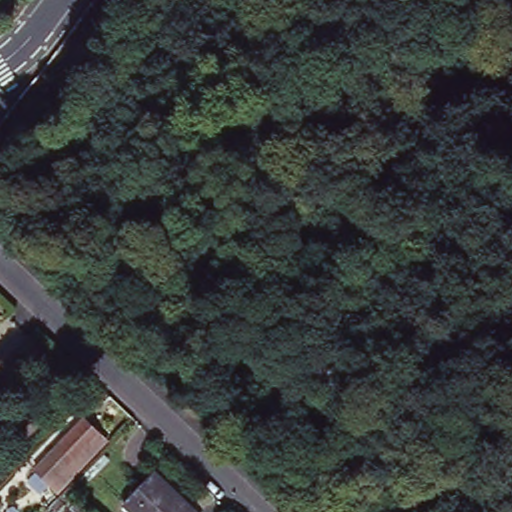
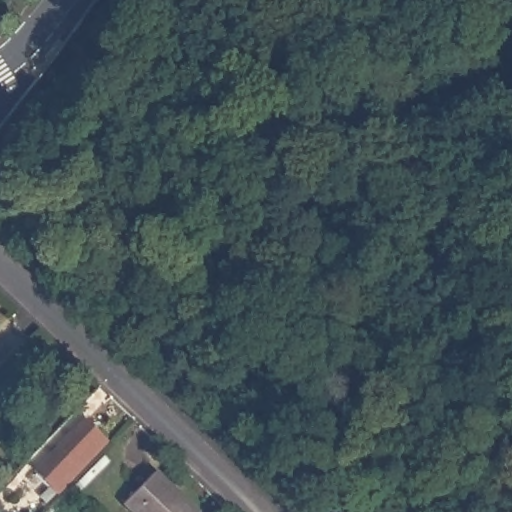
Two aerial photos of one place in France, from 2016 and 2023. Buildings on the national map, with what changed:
unchanged [(58,497),(30,473),(81,417),(105,442),(58,497)]
unchanged [(151,477),(166,491),(188,512),(124,512),(121,510),(151,477)]
unchanged [(0,512),(0,506),(6,512),(0,512)]

